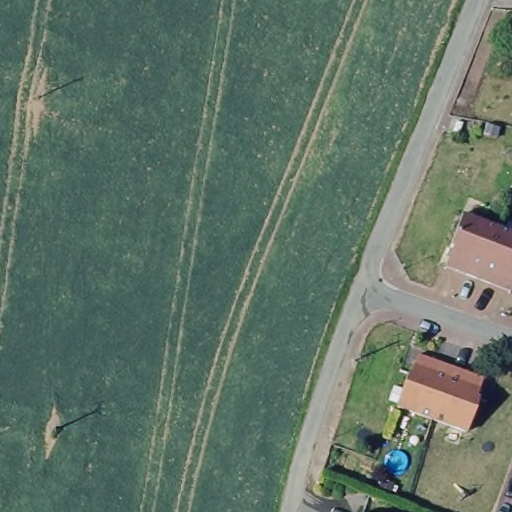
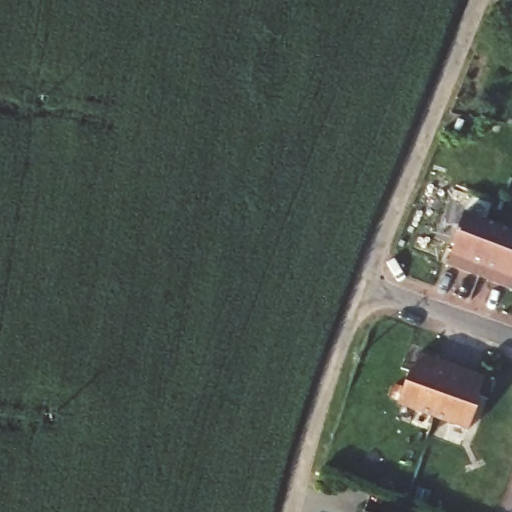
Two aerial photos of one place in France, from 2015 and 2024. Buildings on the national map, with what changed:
unchanged [(459,245),(470,213),(512,228),(512,285),(455,264),(461,246),(459,245)]
unchanged [(421,374),(427,357),(457,369),(486,379),(480,394),(485,397),(472,431),(440,419),(404,405),(416,372),(421,374)]

